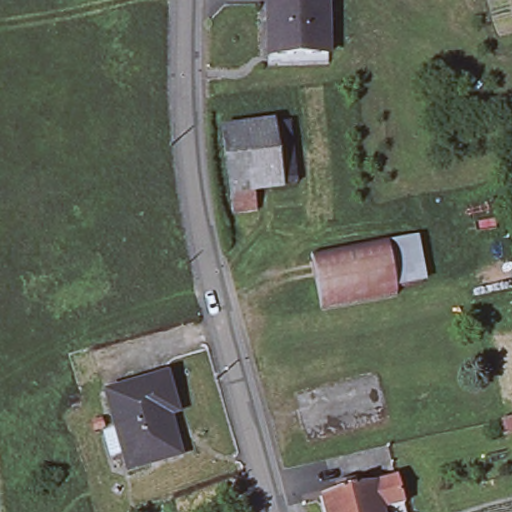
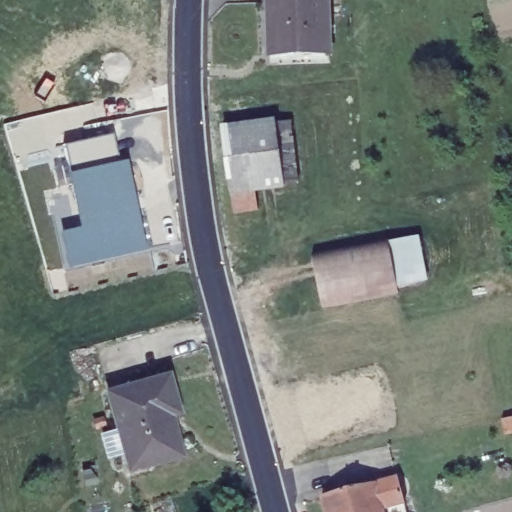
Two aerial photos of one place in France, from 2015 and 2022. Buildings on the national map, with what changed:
unchanged [(270,54),(268,0),(327,0),(329,53),(270,54)]
unchanged [(233,213),(230,194),(222,127),(290,121),(297,183),(255,190),(257,211),(233,213)]
new [(82,229),(62,145),(106,135),(113,165),(117,164),(127,214),(134,212),(142,249),(69,265),(62,234),(82,229)]
unchanged [(402,234),(412,289),(337,303),(327,248),(402,234)]
unchanged [(146,463),(123,469),(102,392),(162,376),(172,412),(163,414),(175,454),(146,463)]
unchanged [(512,431),(505,433),(502,419),(512,417),(512,431)]
unchanged [(322,498),(397,478),(405,512),(326,512),(322,498)]

